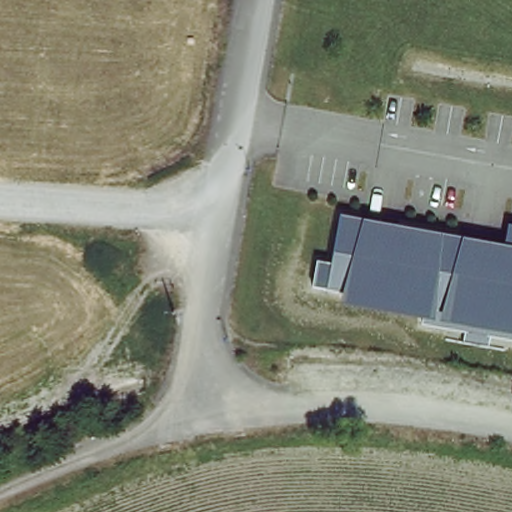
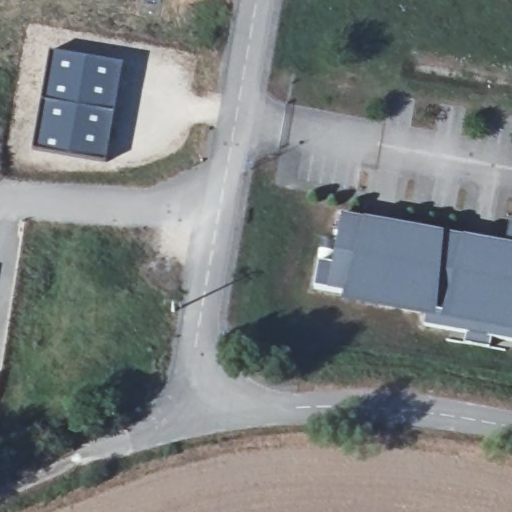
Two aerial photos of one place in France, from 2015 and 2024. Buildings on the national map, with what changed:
new [(50,51),(123,65),(107,161),(32,150),(50,51)]
unchanged [(340,291),(316,285),(320,255),(328,254),(339,209),(505,238),(509,224),(512,224),(512,333),(341,300),(340,291)]

